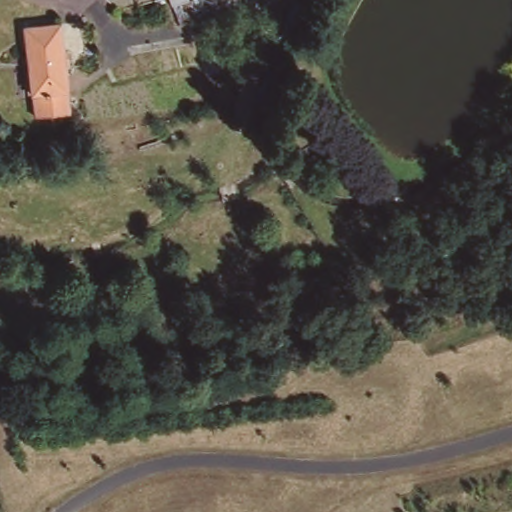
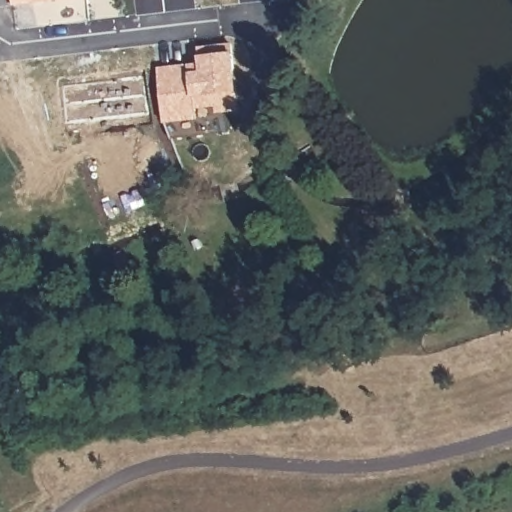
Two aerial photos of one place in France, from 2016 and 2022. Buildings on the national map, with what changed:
new [(10,0),(28,0),(10,2),(10,0)]
demolished [(186,3),(192,1),(194,0),(225,0),(228,11),(191,21),(186,3)]
demolished [(59,23),(67,111),(30,114),(23,26),(59,23)]
new [(198,66),(197,50),(229,46),(236,111),(215,114),(214,106),(193,109),(194,120),(161,124),(155,70),(188,66),(198,66)]

